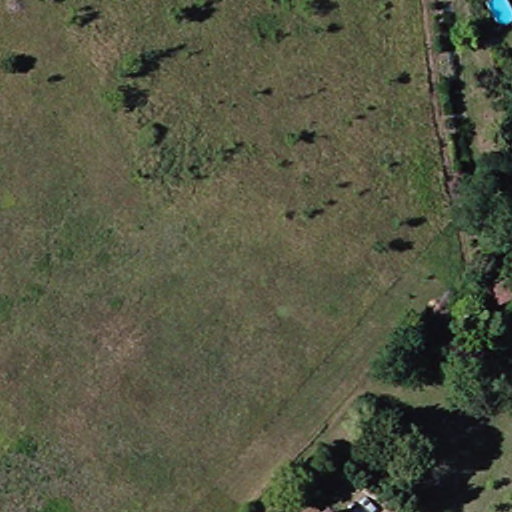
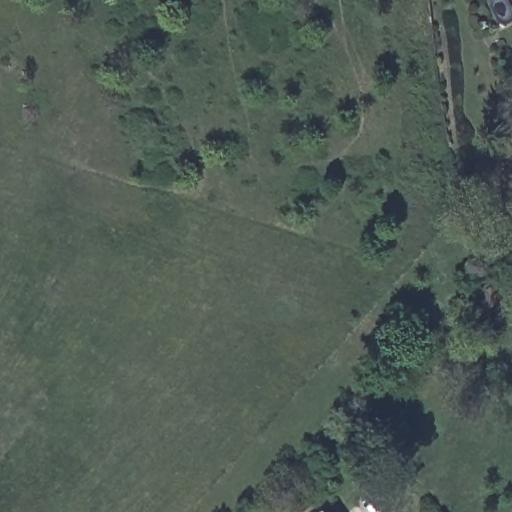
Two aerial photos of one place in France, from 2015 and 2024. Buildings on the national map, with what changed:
unchanged [(332,509),(334,512),(329,512),(332,509)]

